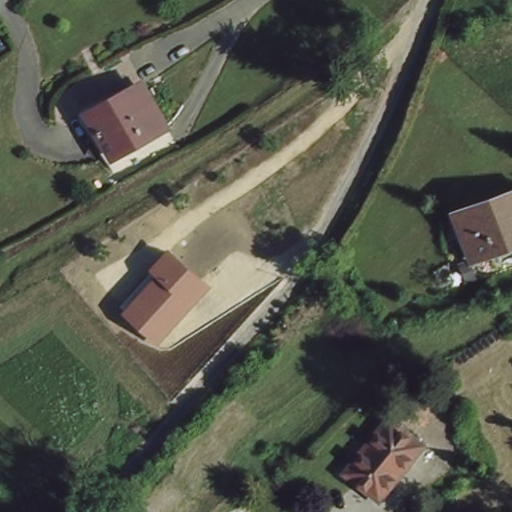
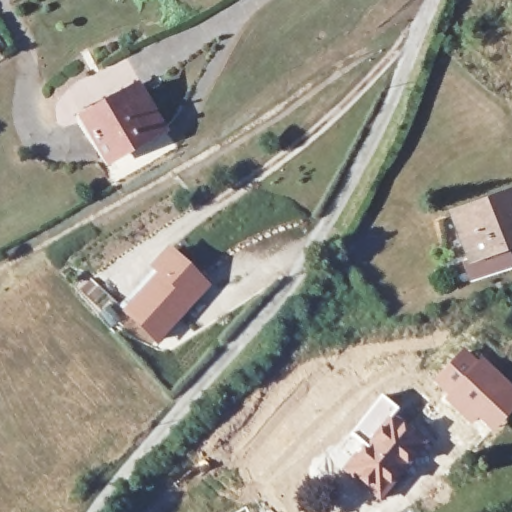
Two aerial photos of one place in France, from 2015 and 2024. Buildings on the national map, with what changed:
unchanged [(160,130),(108,159),(85,120),(137,90),(160,130)]
unchanged [(455,217),(512,190),(512,242),(477,260),(455,217)]
unchanged [(210,286),(158,344),(123,313),(156,276),(149,270),(168,248),(210,286)]
new [(477,361),(481,356),(512,385),(512,412),(492,435),(477,422),(472,427),(440,400),(444,395),(430,381),(462,348),(477,361)]
unchanged [(422,446),(375,498),(345,469),(394,417),(422,446)]

